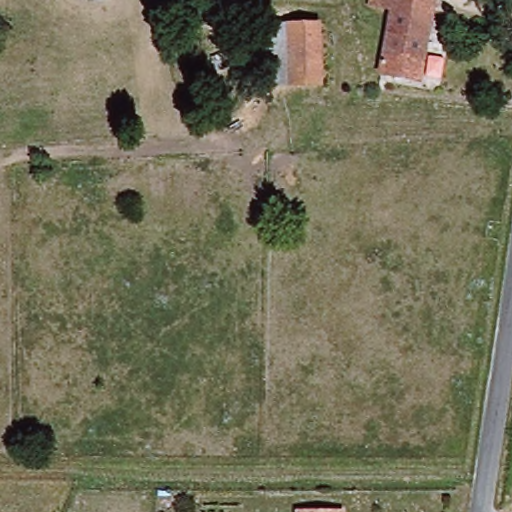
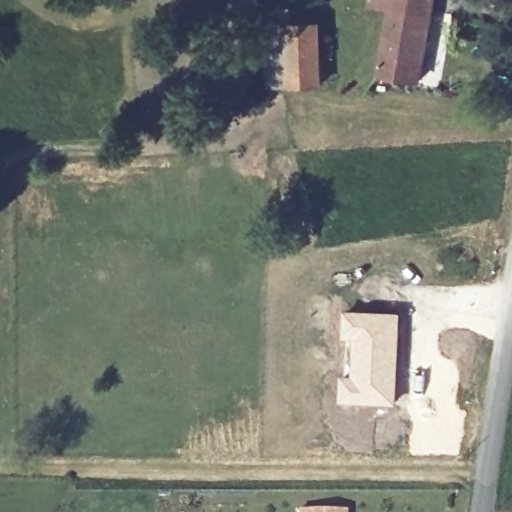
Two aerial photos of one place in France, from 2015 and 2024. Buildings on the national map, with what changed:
unchanged [(394,71),(403,17),(379,13),(380,4),(372,3),(372,0),(439,0),(427,76),(394,71)]
unchanged [(297,84),(294,22),(322,21),(326,82),(297,84)]
new [(344,372),(348,372),(349,339),(345,339),(345,308),(403,311),(399,402),(342,400),(344,372)]
unchanged [(302,511),(329,512),(301,512),(302,511)]

